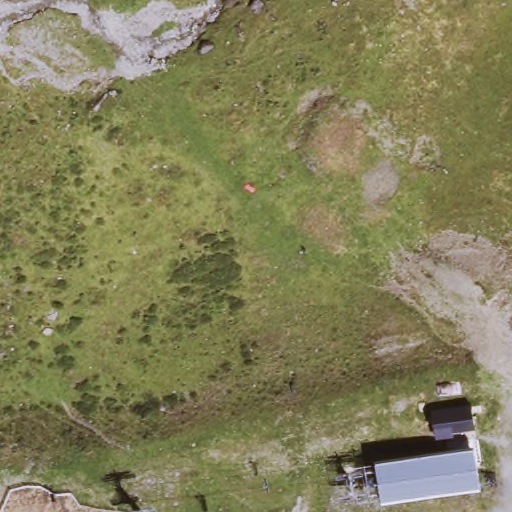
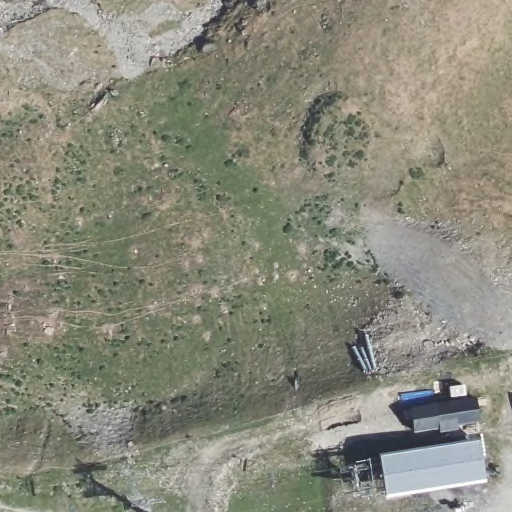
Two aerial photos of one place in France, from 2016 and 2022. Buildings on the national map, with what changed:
unchanged [(431,412),(470,405),(474,425),(435,430),(431,412)]
unchanged [(378,474),(376,457),(472,443),(481,487),(383,501),(378,474)]

